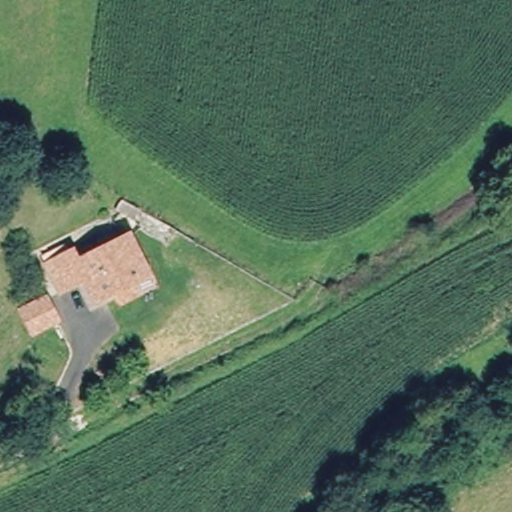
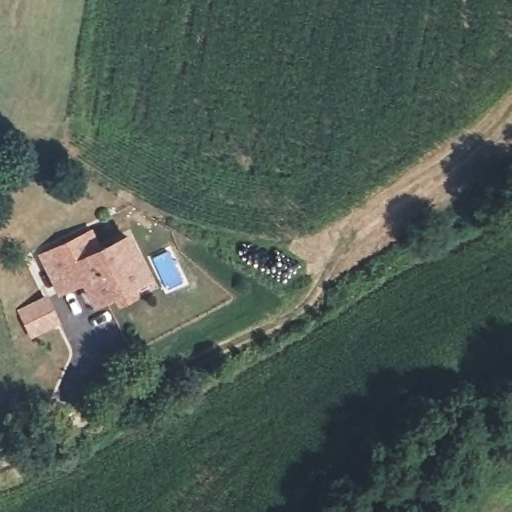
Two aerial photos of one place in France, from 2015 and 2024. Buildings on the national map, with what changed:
unchanged [(151,219),(144,222),(132,215),(135,207),(139,205),(155,215),(151,219)]
unchanged [(71,259),(79,256),(82,265),(130,245),(149,282),(95,306),(83,282),(59,292),(41,260),(63,247),(71,259)]
unchanged [(30,335),(20,318),(36,311),(49,306),(57,330),(28,342),(30,335)]

